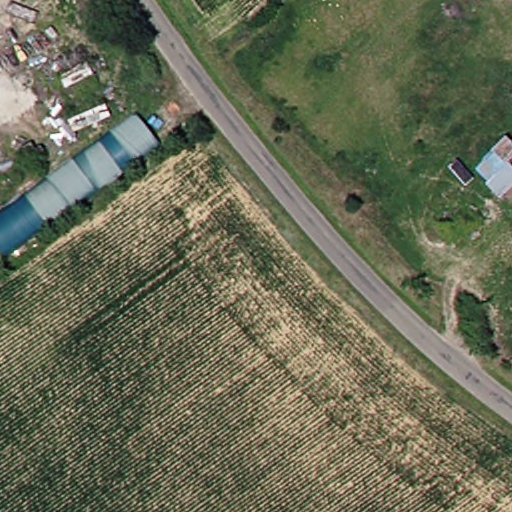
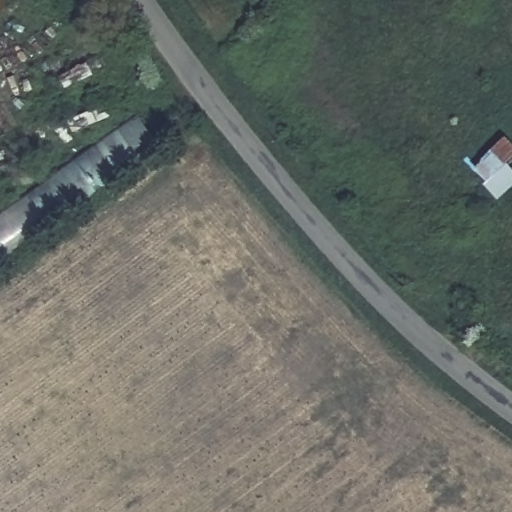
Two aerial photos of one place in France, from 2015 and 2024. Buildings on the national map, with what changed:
unchanged [(496,135),(512,148),(499,162),(512,173),(512,181),(493,197),(461,173),(496,135)]

